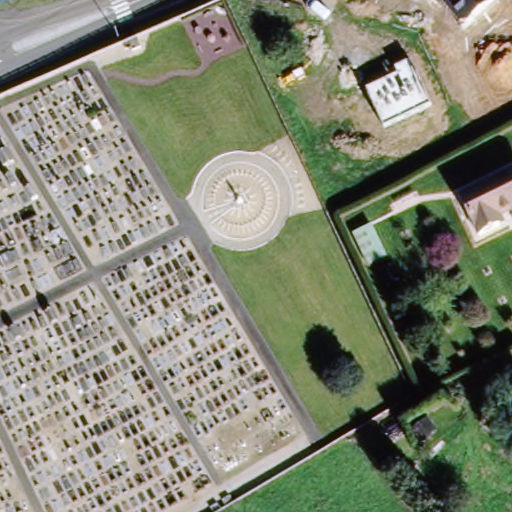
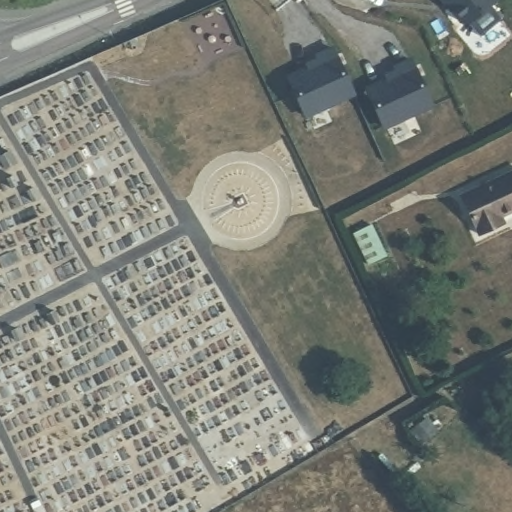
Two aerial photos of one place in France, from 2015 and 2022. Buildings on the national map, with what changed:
unchanged [(443,0),(496,0),(465,26),(443,0)]
new [(298,117),(280,78),(317,61),(314,54),(330,47),(351,92),(298,117)]
unchanged [(367,87),(398,74),(394,66),(410,60),(431,104),(384,125),(367,87)]
unchanged [(483,230),(466,192),(512,171),(512,209),(503,213),(507,220),(483,230)]

